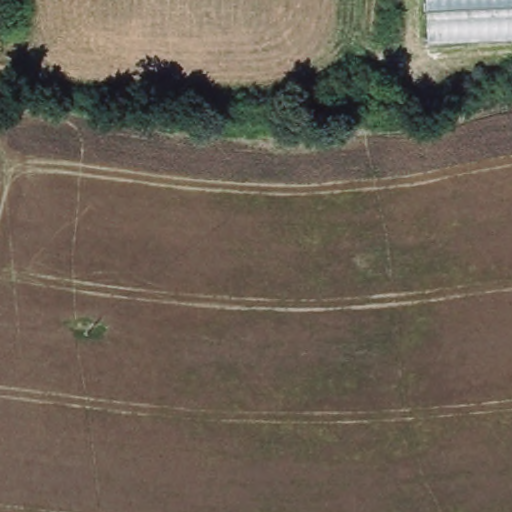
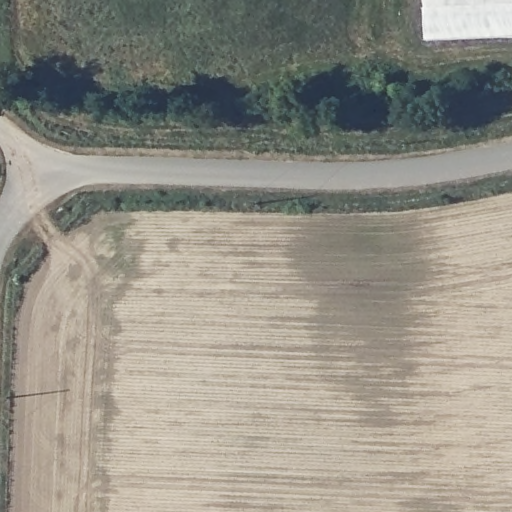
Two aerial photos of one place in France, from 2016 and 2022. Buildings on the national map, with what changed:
unchanged [(430,0),(512,0),(512,37),(432,40),(430,0)]

